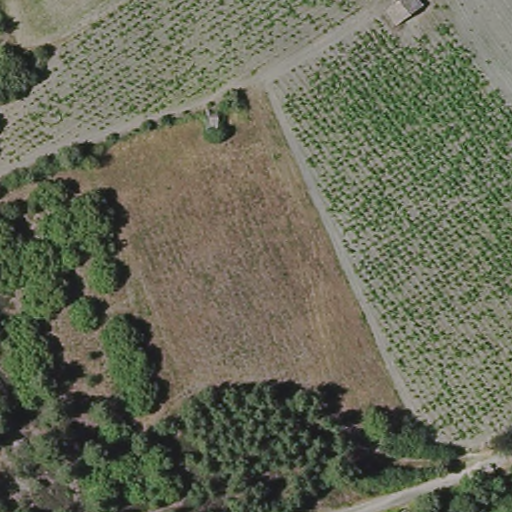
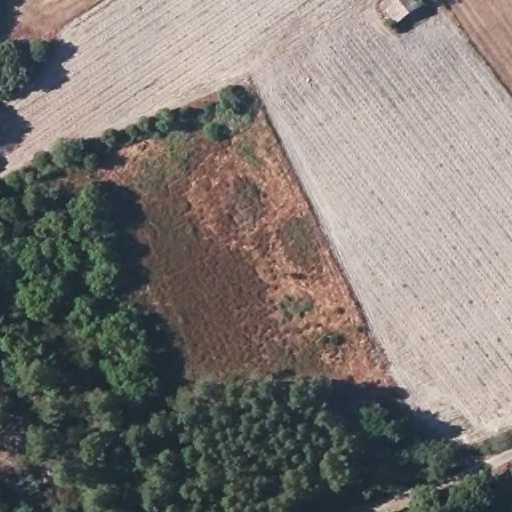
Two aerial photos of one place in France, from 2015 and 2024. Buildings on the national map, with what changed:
unchanged [(403,0),(420,0),(423,4),(398,23),(389,12),(403,0)]

